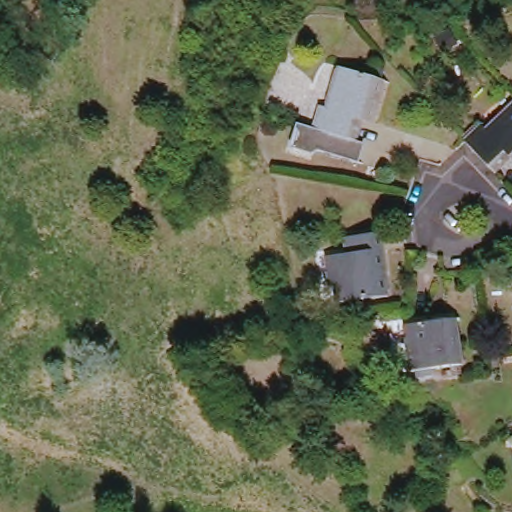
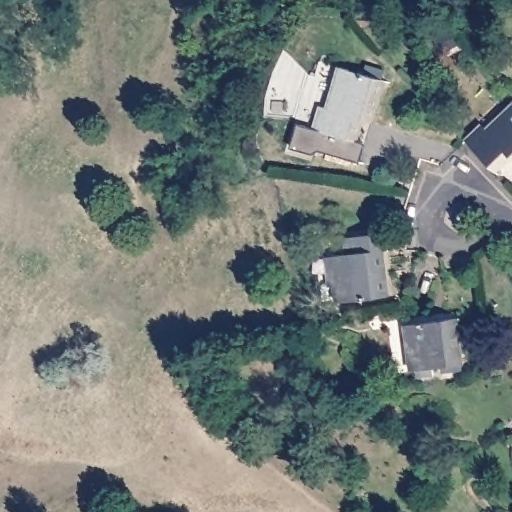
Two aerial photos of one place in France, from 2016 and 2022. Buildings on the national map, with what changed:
unchanged [(317,130),(324,107),(330,109),(342,68),(366,75),(369,67),(386,71),(384,81),(371,124),(363,121),(357,142),(364,144),(359,163),(321,152),(314,156),(295,150),(302,125),(317,130)]
unchanged [(496,173),(467,143),(484,126),(489,131),(512,110),(512,157),(512,156),(496,173)]
unchanged [(338,258),(344,257),(359,255),(357,238),(391,234),(394,252),(387,253),(390,278),(397,277),(399,298),(349,304),(348,283),(341,284),(338,258)]
unchanged [(458,319),(464,366),(413,372),(407,326),(458,319)]

